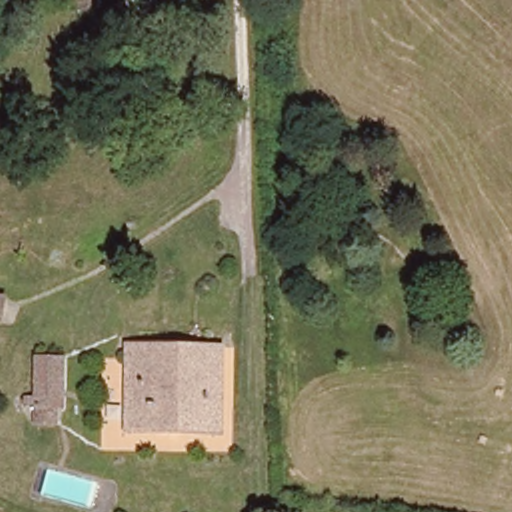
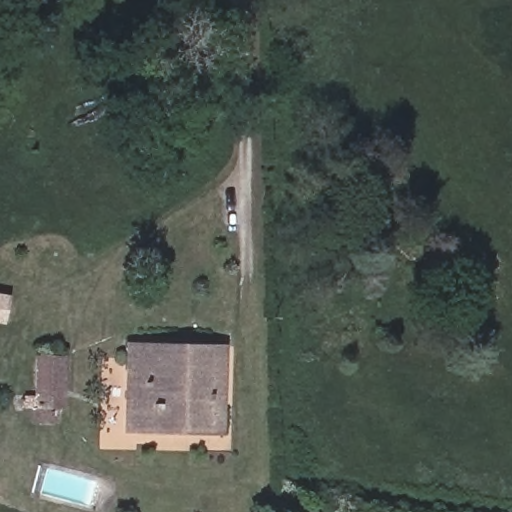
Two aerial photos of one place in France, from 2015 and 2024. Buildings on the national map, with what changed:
unchanged [(128,428),(128,346),(215,348),(225,349),(225,414),(225,432),(128,428)]
unchanged [(70,352),(64,402),(55,402),(54,415),(31,412),(41,349),(70,352)]

